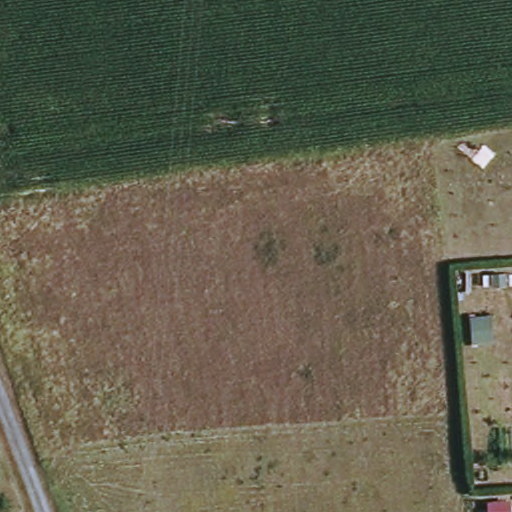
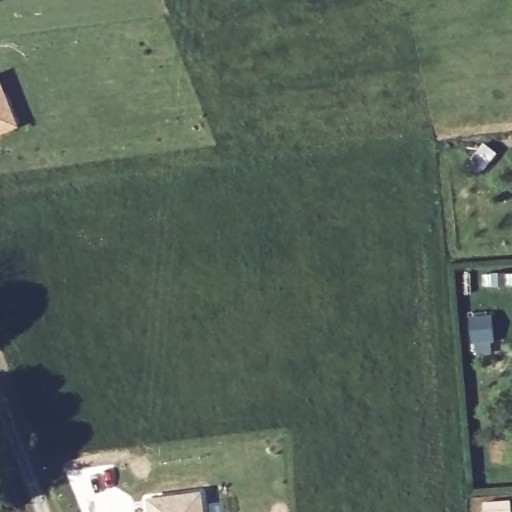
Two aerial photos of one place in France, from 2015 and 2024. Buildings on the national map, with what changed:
new [(17,128),(0,135),(0,86),(17,128)]
new [(206,512),(153,512),(151,501),(204,493),(206,512)]

